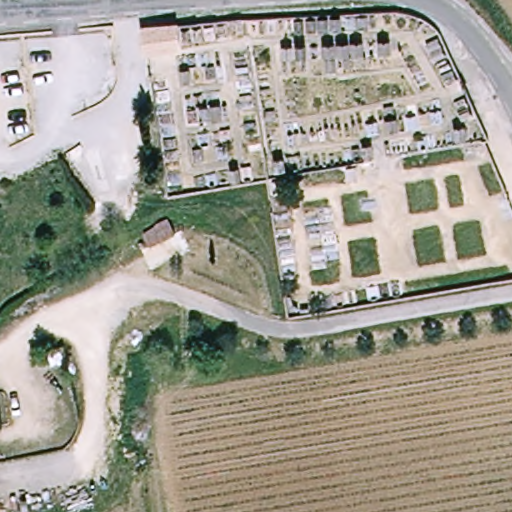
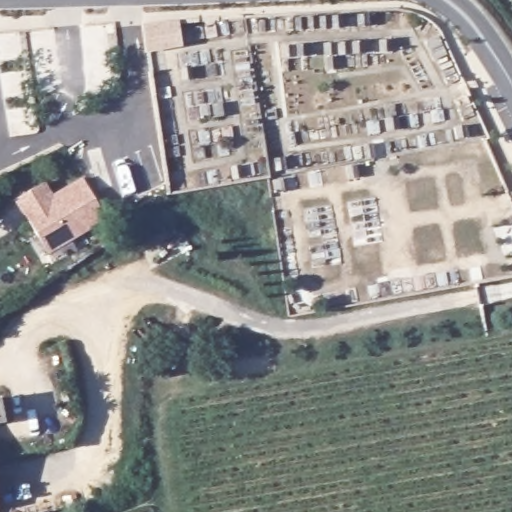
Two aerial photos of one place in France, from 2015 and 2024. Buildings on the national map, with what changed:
unchanged [(149,23),(189,19),(193,41),(152,46),(149,23)]
new [(26,196),(55,174),(64,187),(94,169),(119,209),(59,250),(40,219),(35,212),(26,196)]
unchanged [(10,392),(16,423),(0,426),(0,394),(10,392)]
unchanged [(2,447),(3,461),(0,462),(0,447),(2,447)]

